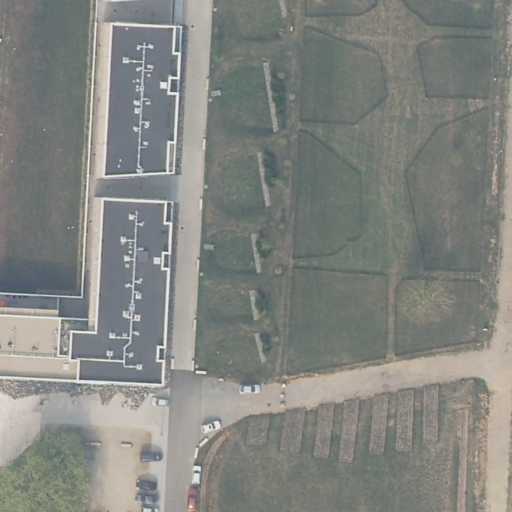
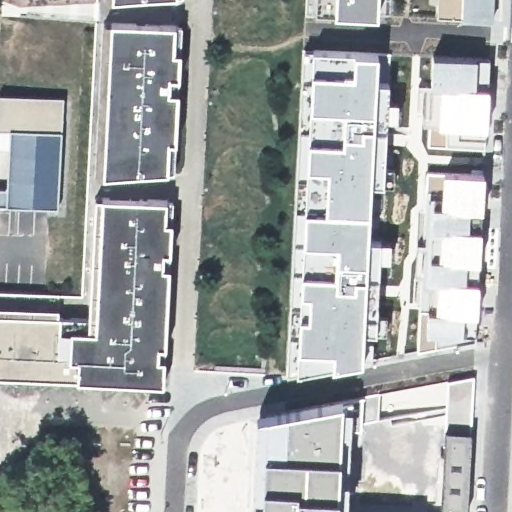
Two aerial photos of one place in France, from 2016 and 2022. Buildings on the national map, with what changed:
unchanged [(96,0),(182,0),(182,27),(105,23),(98,176),(176,171),(173,200),(96,196),(89,315),(59,315),(59,310),(0,307),(0,292),(81,295),(96,0)]
new [(336,12),(315,11),(307,10),(307,0),(379,0),(379,15),(336,12)]
new [(493,0),(493,20),(461,19),(438,17),(439,0),(493,0)]
unchanged [(182,27),(176,171),(98,176),(105,23),(182,27)]
new [(303,47),(394,54),(375,358),(286,372),(303,47)]
new [(432,59),(487,60),(483,150),(428,147),(432,59)]
new [(65,96),(62,134),(59,209),(7,207),(0,207),(0,188),(8,189),(11,130),(0,130),(0,95),(65,96)]
unchanged [(173,200),(164,385),(0,376),(0,307),(59,310),(59,315),(89,315),(96,196),(173,200)]
new [(268,415),(319,405),(322,432),(472,402),(466,512),(262,512),(268,415)]

